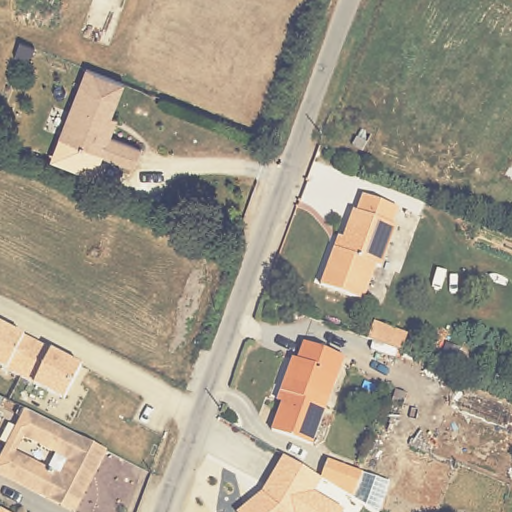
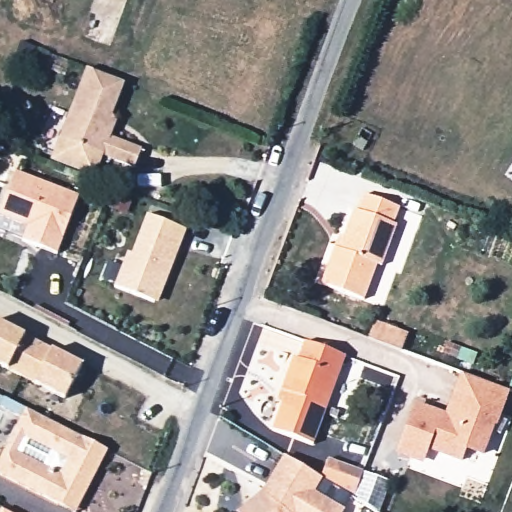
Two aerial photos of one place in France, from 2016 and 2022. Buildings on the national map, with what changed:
unchanged [(112,137),(143,149),(136,167),(61,139),(88,69),(118,80),(126,82),(110,123),(117,126),(112,137)]
new [(0,217),(0,199),(10,172),(74,196),(52,254),(18,240),(23,226),(17,224),(0,217)]
unchanged [(399,206),(393,223),(397,225),(381,269),(376,267),(365,300),(322,285),(335,249),(339,250),(354,209),(358,211),(364,194),(399,206)]
new [(153,298),(114,283),(127,249),(131,251),(146,212),(185,226),(166,276),(157,300),(153,298)]
unchanged [(375,323),(405,335),(399,351),(369,340),(375,323)]
unchanged [(81,365),(63,401),(0,368),(0,324),(81,365)]
unchanged [(311,442),(270,427),(283,392),(279,390),(292,355),(296,357),(303,338),(343,353),(311,442)]
new [(415,405),(445,417),(461,375),(506,392),(493,425),(492,425),(480,455),(465,450),(460,461),(425,447),(420,462),(396,452),(415,405)]
unchanged [(58,503),(0,473),(0,460),(7,447),(14,432),(26,407),(55,422),(108,449),(97,470),(77,512),(58,503)]
unchanged [(282,457),(322,478),(315,493),(342,510),(341,512),(238,512),(261,492),(282,457)]
unchanged [(7,510),(12,512),(2,512),(3,508),(7,510)]

